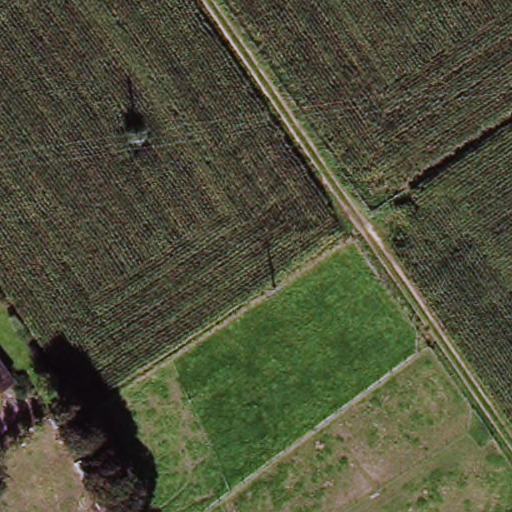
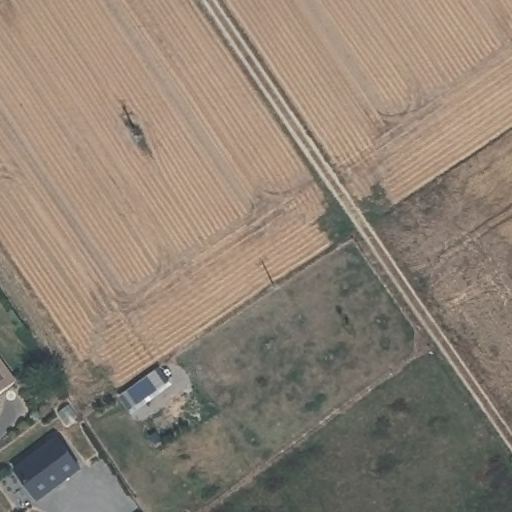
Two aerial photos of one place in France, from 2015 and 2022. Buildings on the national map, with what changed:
unchanged [(0,396),(0,355),(19,385),(0,396)]
new [(58,440),(80,471),(40,500),(15,471),(58,440)]

